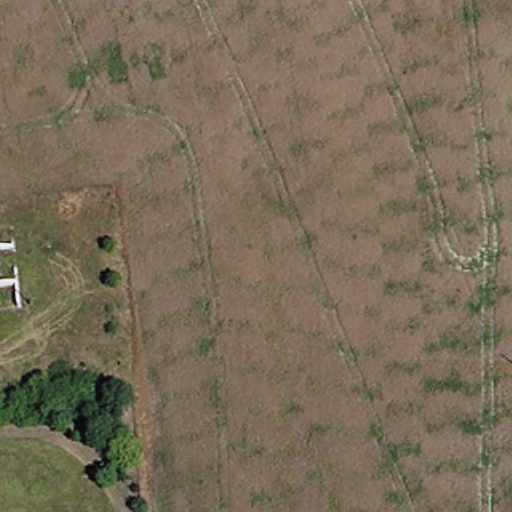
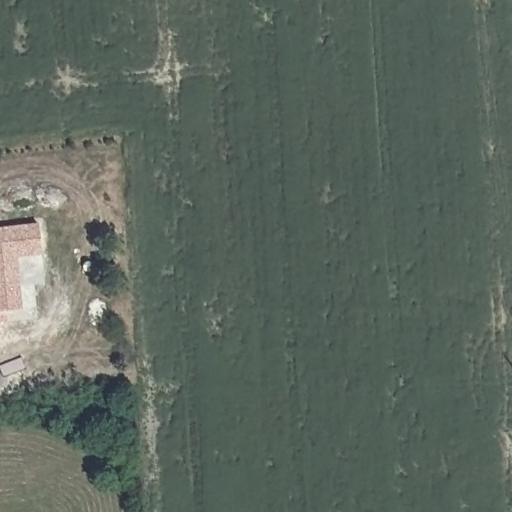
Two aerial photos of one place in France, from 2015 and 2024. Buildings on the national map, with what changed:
new [(16,257),(21,311),(0,313),(0,228),(38,224),(40,240),(42,255),(16,257)]

